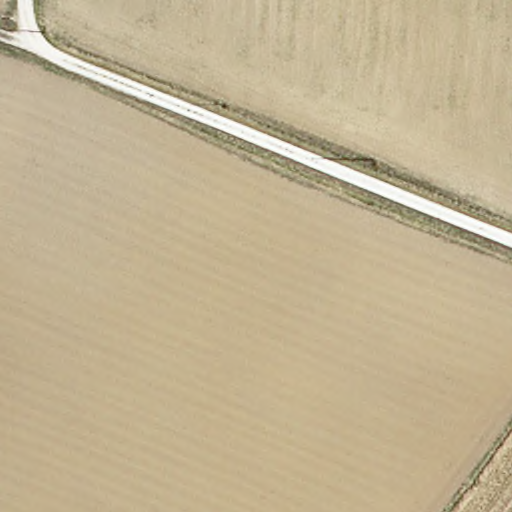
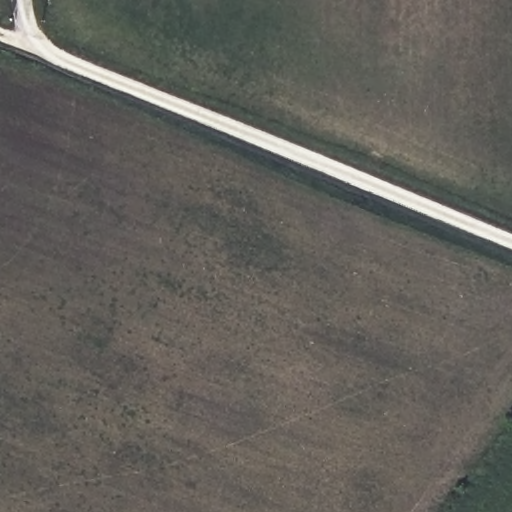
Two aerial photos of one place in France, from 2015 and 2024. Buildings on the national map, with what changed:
[]

